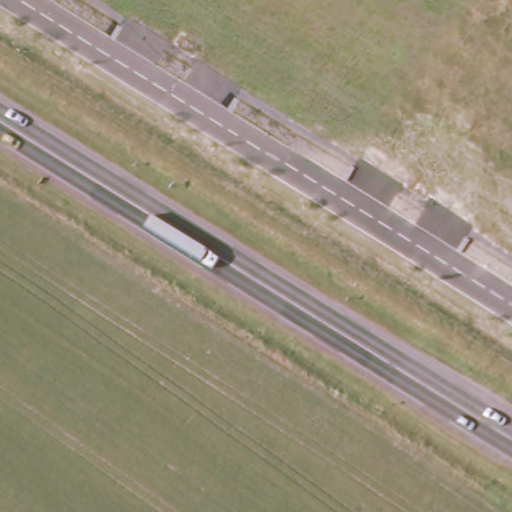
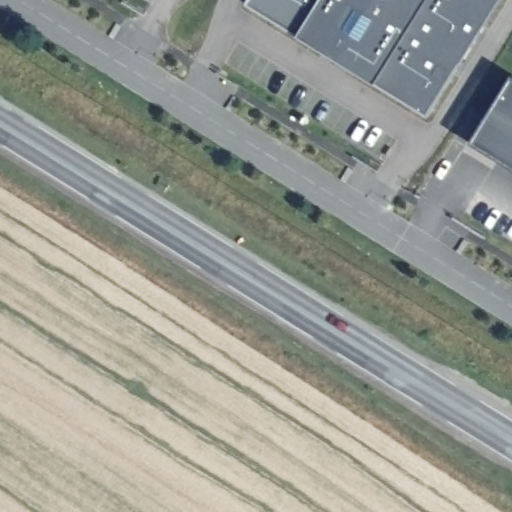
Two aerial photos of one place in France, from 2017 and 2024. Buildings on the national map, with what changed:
new [(245,6),(248,0),(500,0),(427,117),(245,6)]
new [(512,77),(512,172),(467,144),(511,76),(512,77)]

